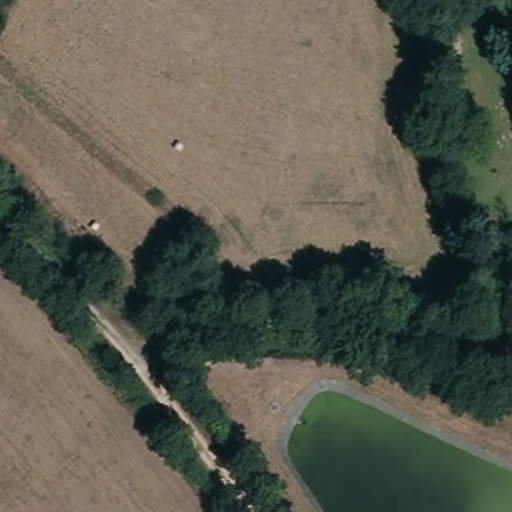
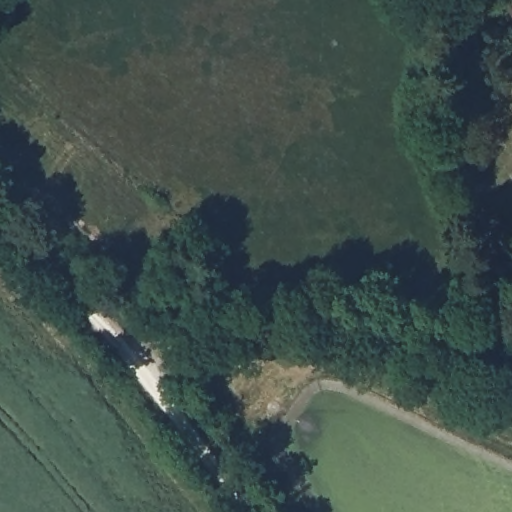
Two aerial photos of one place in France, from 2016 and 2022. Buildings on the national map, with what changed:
unchanged [(512,0),(512,2),(511,0),(512,0)]

